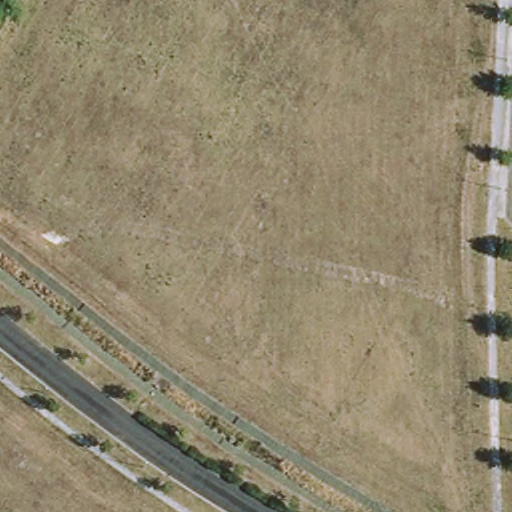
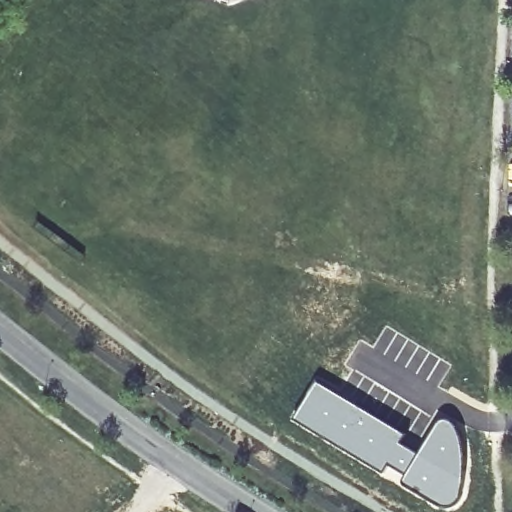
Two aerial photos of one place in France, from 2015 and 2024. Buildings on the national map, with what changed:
new [(317,379),(406,432),(402,441),(419,451),(405,474),(388,464),(383,473),(294,419),(317,379)]
new [(405,474),(419,451),(440,418),(455,423),(465,457),(461,499),(443,505),(401,481),(405,474)]

